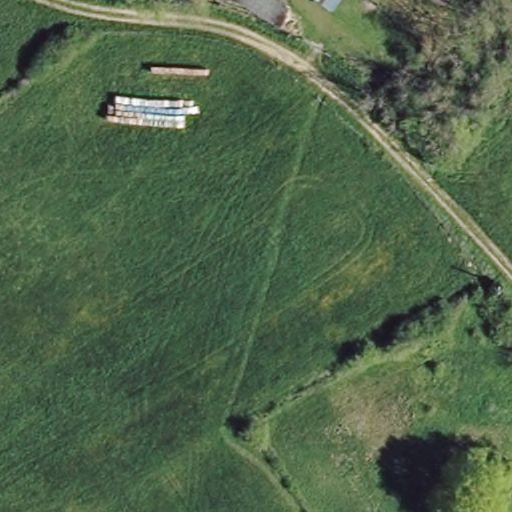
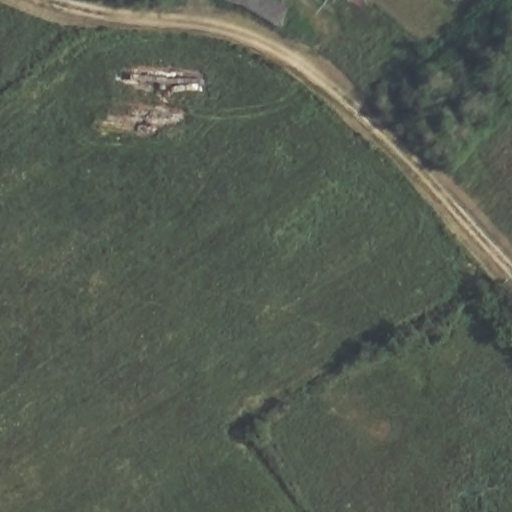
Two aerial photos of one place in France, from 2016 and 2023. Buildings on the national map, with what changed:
unchanged [(286,0),(295,4),(283,29),(216,0),(286,0)]
unchanged [(335,0),(327,9),(316,0),(335,0)]

